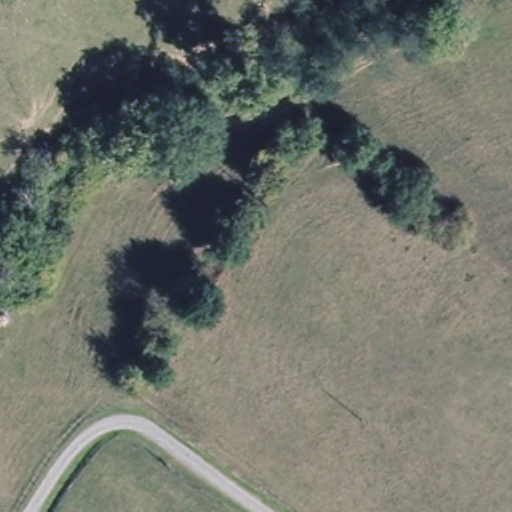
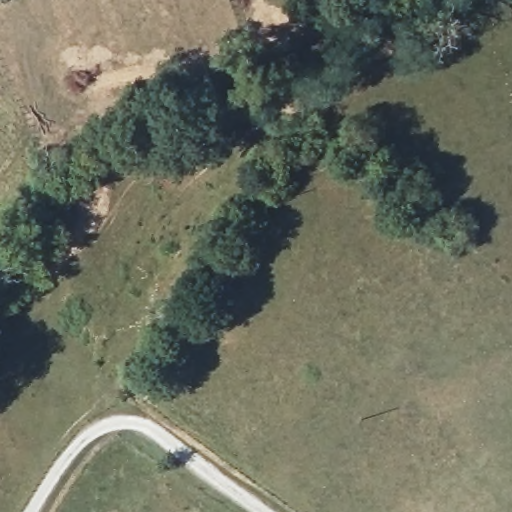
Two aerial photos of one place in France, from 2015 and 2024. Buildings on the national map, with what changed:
[]

